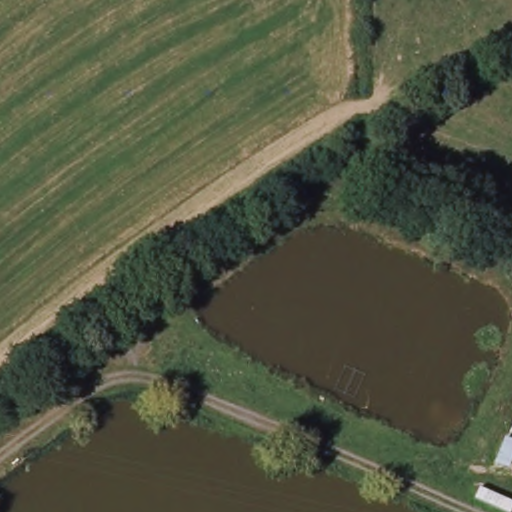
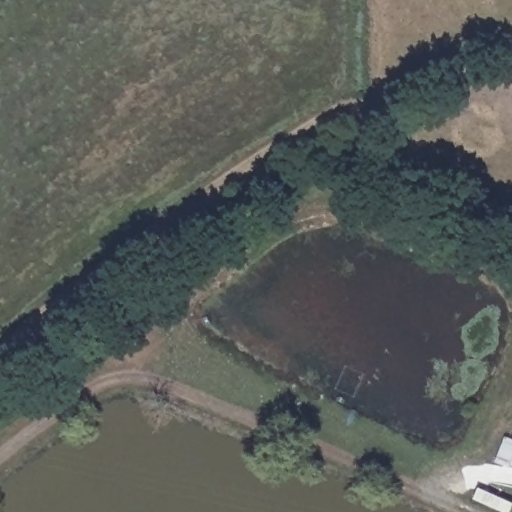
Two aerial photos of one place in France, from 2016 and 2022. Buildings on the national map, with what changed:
unchanged [(512,436),(512,466),(500,461),(510,435),(512,436)]
unchanged [(508,512),(478,497),(483,486),(512,500),(512,512),(508,512)]

